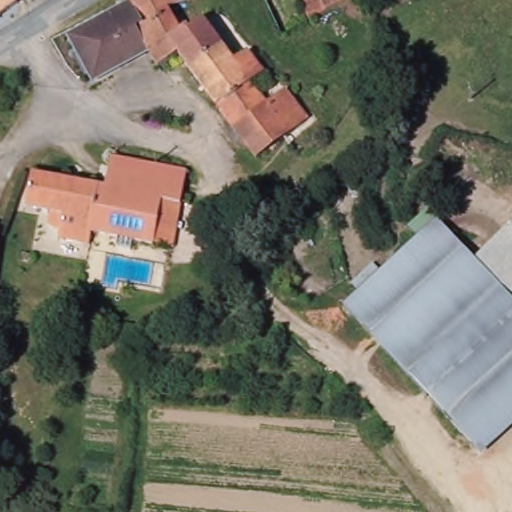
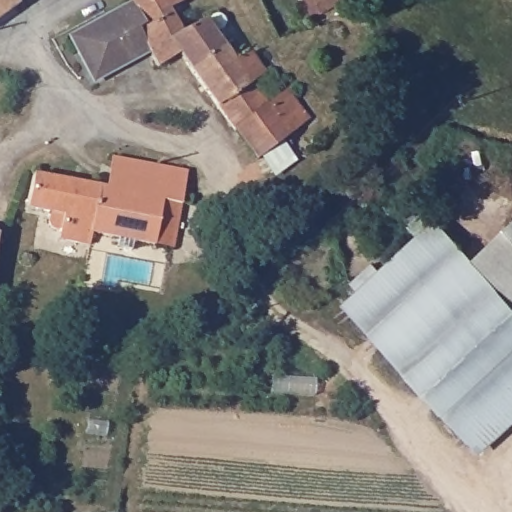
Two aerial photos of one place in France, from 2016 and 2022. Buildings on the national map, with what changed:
unchanged [(0,22),(0,0),(14,0),(20,8),(0,22)]
unchanged [(161,16),(165,14),(180,36),(166,46),(176,59),(156,72),(144,56),(130,35),(140,27),(128,7),(123,0),(152,0),(161,16)]
unchanged [(190,1),(165,14),(161,16),(152,0),(189,0),(190,1)]
unchanged [(313,0),(356,0),(312,21),(304,5),(313,0)]
unchanged [(93,82),(66,42),(128,7),(140,27),(130,35),(144,56),(93,82)]
unchanged [(247,85),(258,98),(277,86),(292,107),(304,121),(305,125),(287,138),(253,161),(187,71),(176,59),(166,46),(180,36),(201,25),(220,47),(232,39),(245,55),(260,77),(247,85)]
unchanged [(34,174),(110,190),(116,157),(190,173),(174,247),(94,232),(91,243),(61,237),(63,226),(52,224),(54,211),(28,206),(34,174)]
unchanged [(360,178),(366,190),(354,196),(348,184),(360,178)]
unchanged [(436,222),(474,263),(504,295),(512,304),(512,406),(472,444),(432,401),(344,305),(436,222)]
unchanged [(504,295),(474,263),(512,228),(512,304),(504,295)]

